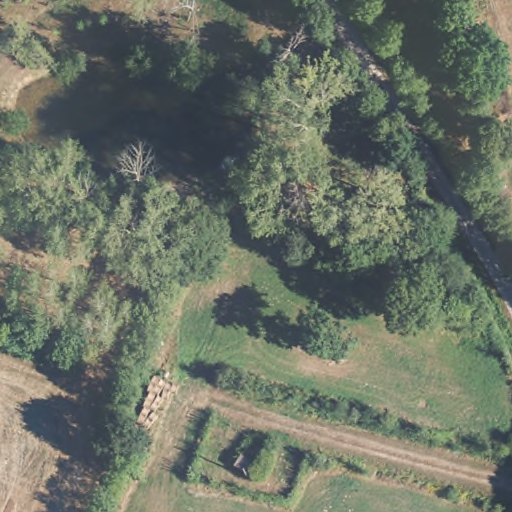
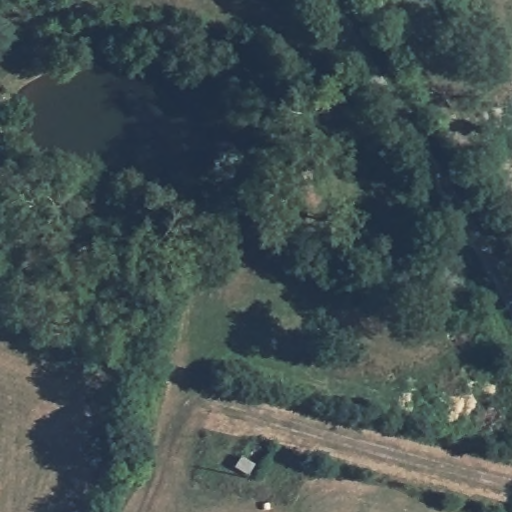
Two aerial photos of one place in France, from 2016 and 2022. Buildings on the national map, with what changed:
unchanged [(491,150),(511,198),(495,204),(476,156),(491,150)]
unchanged [(257,433),(273,444),(254,476),(236,466),(257,433)]

